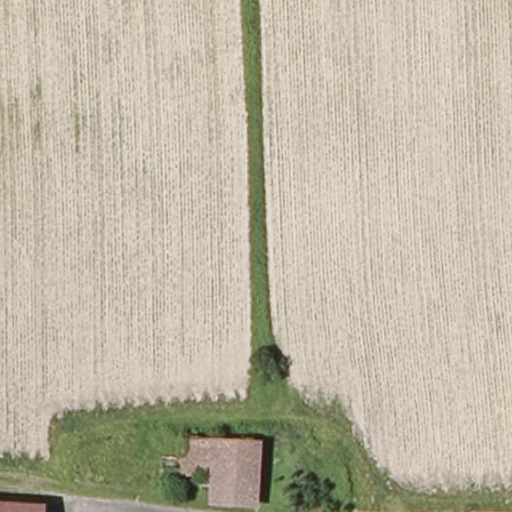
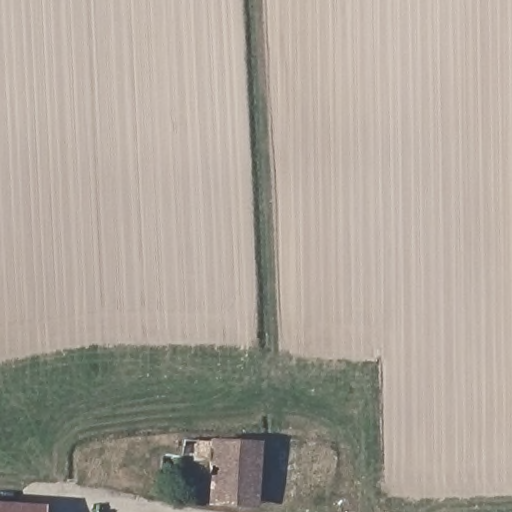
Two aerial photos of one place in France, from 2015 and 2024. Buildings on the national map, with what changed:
unchanged [(165,482),(165,456),(186,456),(186,441),(260,445),(256,486),(257,510),(217,508),(217,484),(165,482)]
unchanged [(0,512),(0,509),(39,512),(0,512)]

